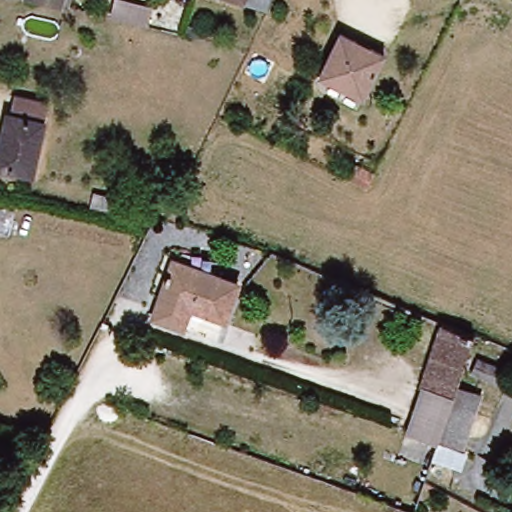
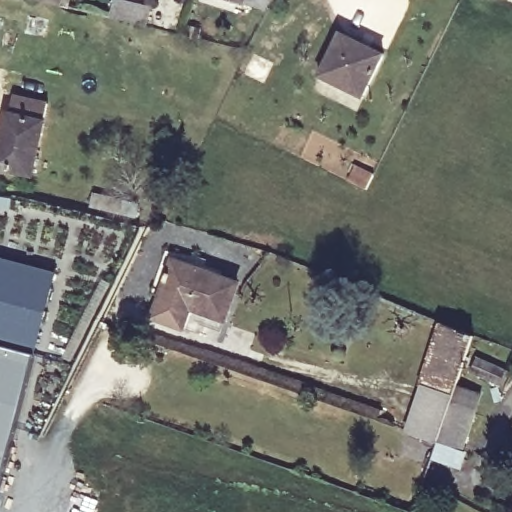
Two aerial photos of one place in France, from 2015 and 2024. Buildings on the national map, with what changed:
unchanged [(65,2),(54,0),(75,0),(74,5),(65,2)]
unchanged [(237,0),(269,0),(266,9),(237,0)]
unchanged [(117,2),(150,12),(146,28),(112,20),(117,2)]
unchanged [(5,24),(0,45),(0,23),(5,24)]
unchanged [(388,55),(368,97),(325,77),(345,34),(388,55)]
unchanged [(11,115),(15,97),(49,105),(32,176),(0,168),(0,146),(8,114),(11,115)]
unchanged [(177,255),(244,277),(224,336),(157,313),(177,255)]
new [(0,484),(0,259),(57,274),(34,356),(0,484)]
unchanged [(481,411),(477,423),(469,448),(445,440),(413,429),(446,323),(479,336),(457,403),(472,407),(481,411)]
unchanged [(484,357),(512,369),(505,385),(477,372),(484,357)]

